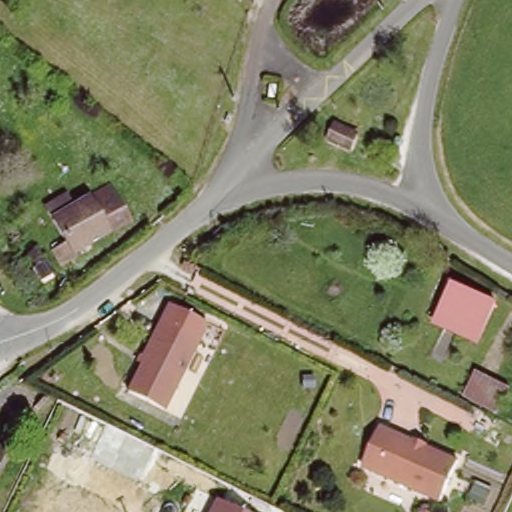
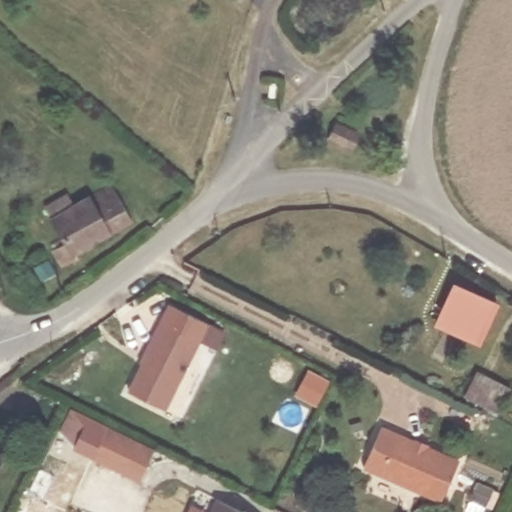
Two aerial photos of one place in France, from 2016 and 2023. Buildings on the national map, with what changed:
unchanged [(335,120),(355,130),(346,146),(327,136),(335,120)]
unchanged [(64,249),(70,245),(67,240),(66,239),(50,212),(72,199),(78,210),(79,209),(115,189),(118,194),(123,202),(136,225),(81,258),(82,260),(67,269),(57,252),(64,249)]
unchanged [(437,320),(455,283),(495,302),(477,339),(437,320)]
unchanged [(129,393),(147,359),(145,358),(163,325),(172,307),(174,308),(209,327),(200,345),(165,412),(129,393)]
unchanged [(512,389),(512,401),(504,416),(469,398),(482,373),(512,389)]
new [(72,450),(74,446),(58,431),(70,409),(154,448),(137,482),(72,450)]
unchanged [(382,426),(460,460),(441,500),(363,466),(382,426)]
unchanged [(11,441),(0,460),(0,434),(11,441)]
unchanged [(241,512),(209,512),(215,500),(241,512)]

